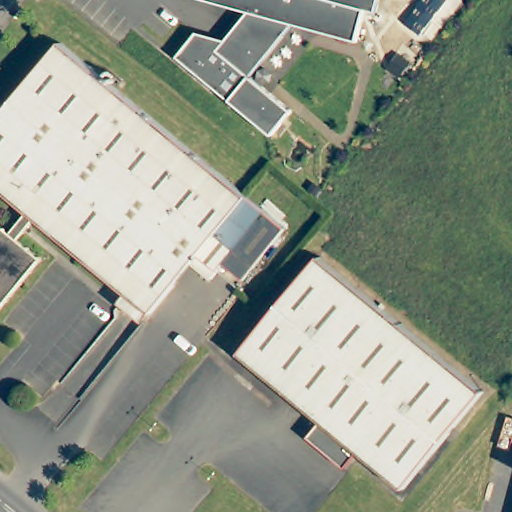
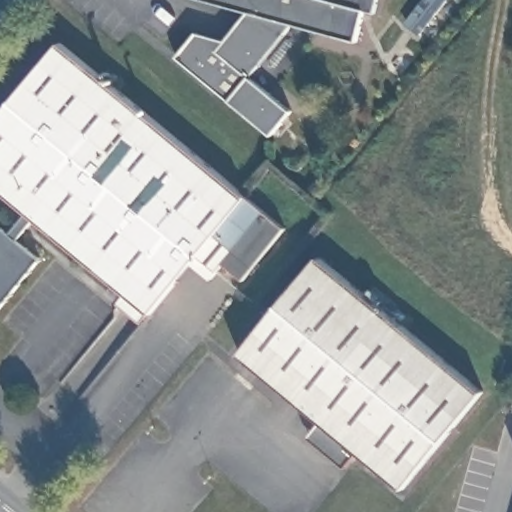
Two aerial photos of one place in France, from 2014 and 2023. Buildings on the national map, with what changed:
unchanged [(381,13),(371,10),(362,41),(299,24),(255,77),(296,111),(276,136),(181,57),(202,32),(223,49),(254,12),(209,0),(385,0),(381,13)]
unchanged [(285,222),(244,273),(225,257),(211,274),(192,259),(151,309),(35,215),(18,235),(41,254),(0,304),(0,220),(11,229),(28,209),(0,186),(0,113),(61,38),(285,222)]
unchanged [(485,390),(404,488),(356,449),(345,464),(307,433),(320,419),(239,353),(320,255),(485,390)]

